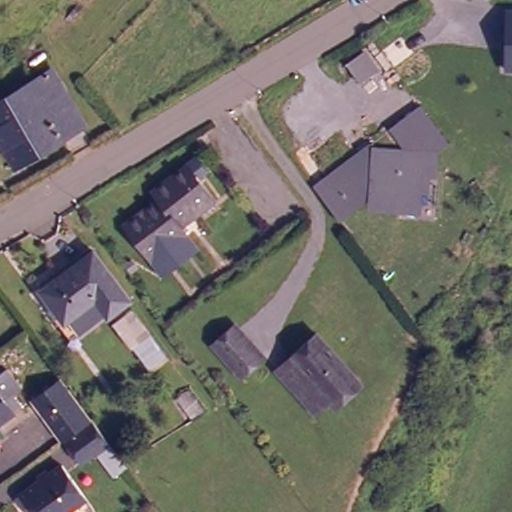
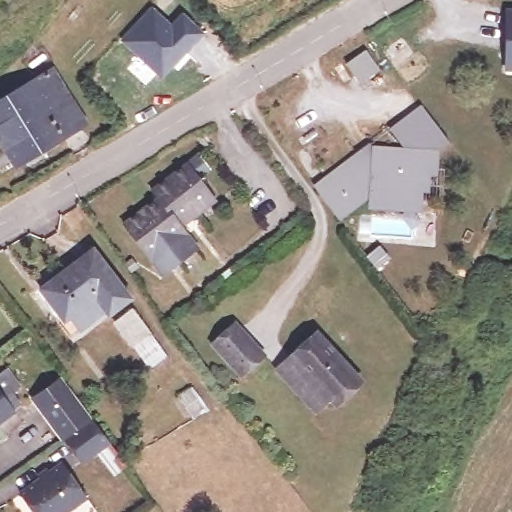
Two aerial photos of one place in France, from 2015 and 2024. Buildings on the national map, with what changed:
new [(152,5),(170,22),(183,11),(206,35),(161,80),(119,39),(152,5)]
unchanged [(508,30),(507,13),(512,13),(512,71),(507,71),(508,30)]
unchanged [(3,152),(0,147),(0,102),(49,72),(81,124),(35,152),(11,167),(3,152)]
unchanged [(438,151),(437,171),(430,172),(416,167),(407,151),(402,150),(389,131),(421,105),(448,142),(438,151)]
unchanged [(315,192),(326,185),(322,179),(354,155),(369,155),(369,149),(402,150),(407,151),(416,167),(430,172),(429,187),(422,188),(421,204),(369,202),(338,224),(315,192)]
unchanged [(127,223),(145,210),(164,196),(159,191),(174,179),(205,155),(215,169),(203,180),(219,201),(201,214),(186,225),(202,247),(183,261),(164,274),(155,258),(127,223)]
unchanged [(102,321),(90,306),(56,328),(31,293),(85,254),(88,251),(128,300),(124,302),(102,321)]
unchanged [(130,348),(110,322),(128,308),(147,335),(130,348)]
unchanged [(226,366),(199,332),(224,314),(252,347),(226,366)]
unchanged [(356,383),(332,406),(324,398),(310,410),(287,382),(274,367),(293,352),(315,335),(356,383)]
unchanged [(4,371),(18,390),(11,396),(17,408),(12,413),(11,417),(0,426),(0,373),(4,371)]
unchanged [(66,442),(37,402),(65,382),(95,422),(112,442),(82,463),(66,442)]
unchanged [(83,499),(66,512),(29,512),(22,502),(63,470),(83,499)]

